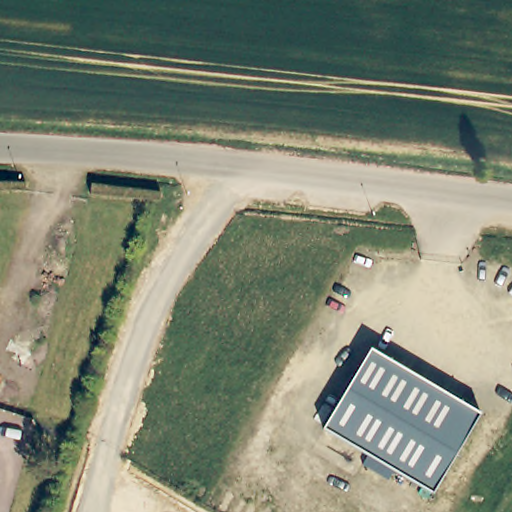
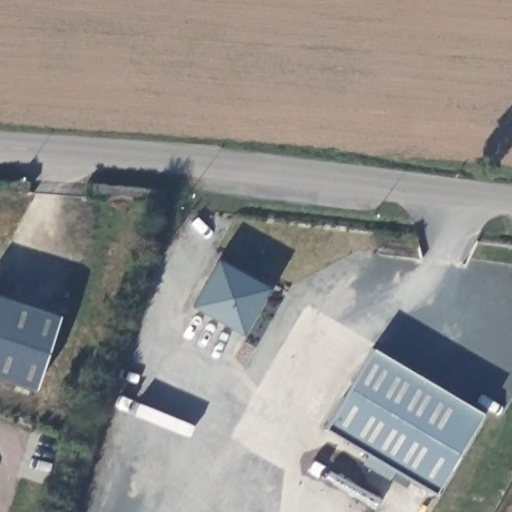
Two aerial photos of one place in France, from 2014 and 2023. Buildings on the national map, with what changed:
new [(244,337),(191,308),(218,259),(270,287),(244,337)]
new [(37,389),(0,378),(0,297),(59,315),(37,389)]
unchanged [(383,478),(366,468),(372,458),(327,433),(375,352),(484,416),(437,498),(398,475),(392,484),(383,478)]

